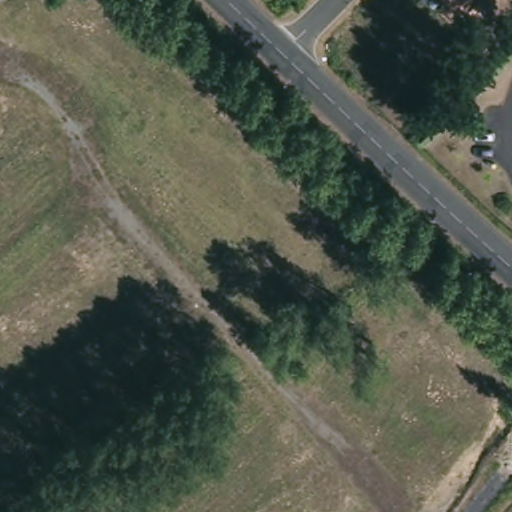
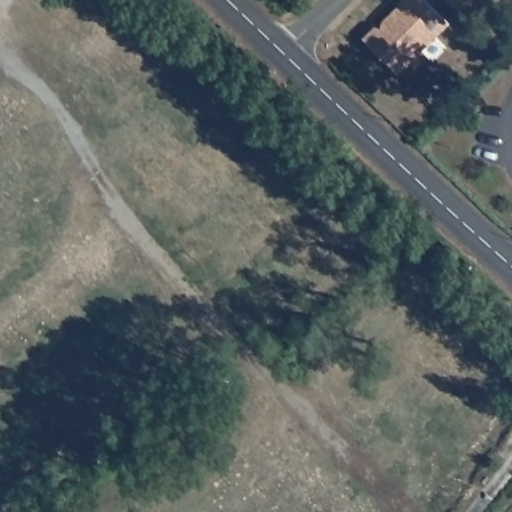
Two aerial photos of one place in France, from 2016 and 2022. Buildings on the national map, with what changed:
new [(376,27),(381,29),(383,22),(401,5),(400,4),(403,0),(426,0),(450,24),(399,75),(364,40),(376,27)]

